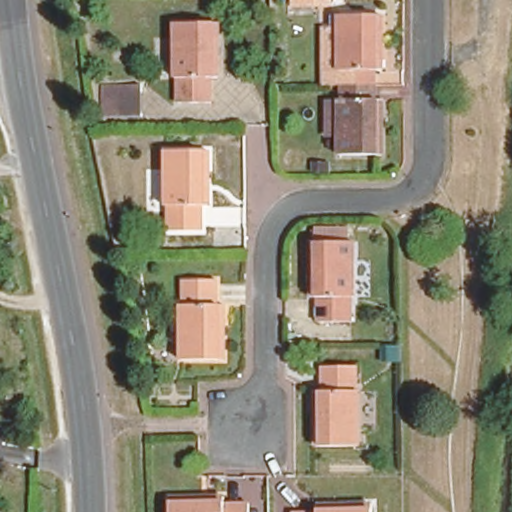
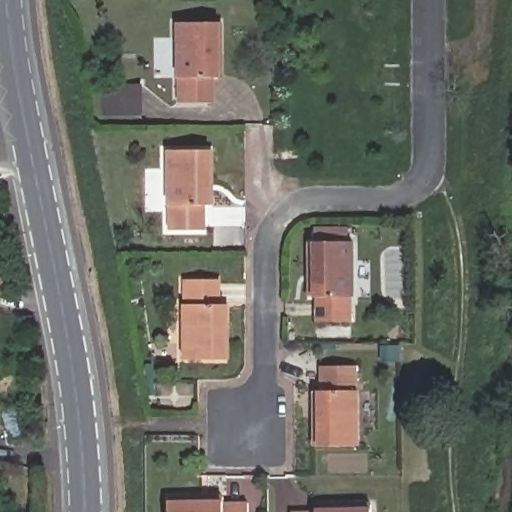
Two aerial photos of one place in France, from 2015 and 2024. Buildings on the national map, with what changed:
demolished [(326,12),(311,12),(311,0),(326,0),(326,12)]
demolished [(340,88),(322,88),(321,31),(327,31),(327,20),(335,20),(381,20),(381,71),(373,71),(373,88),(340,88)]
unchanged [(214,22),(212,75),(208,75),(208,100),(176,100),(177,75),(173,75),(174,22),(214,22)]
unchanged [(139,85),(139,114),(104,112),(105,85),(139,85)]
demolished [(373,105),(381,105),(380,156),(336,156),(336,140),(336,105),(340,105),(340,88),(373,88),(373,105)]
unchanged [(204,155),(203,208),(198,208),(198,232),(168,232),(169,207),(165,207),(165,155),(204,155)]
demolished [(329,172),(311,172),(311,160),(329,160),(329,172)]
unchanged [(353,250),(353,305),(349,305),(350,328),(316,328),(316,304),(310,304),(309,251),(353,250)]
unchanged [(214,278),(214,303),(218,303),(218,358),(179,358),(179,303),(182,303),(183,278),(214,278)]
unchanged [(396,361),(383,362),(383,345),(395,345),(396,361)]
unchanged [(353,366),(353,389),(357,390),(357,443),(314,444),(313,390),(322,390),(321,366),(353,366)]
unchanged [(222,499),(222,502),(248,502),(248,512),(169,512),(169,500),(222,499)]
unchanged [(318,509),(371,507),(371,512),(293,512),(318,511),(318,509)]

